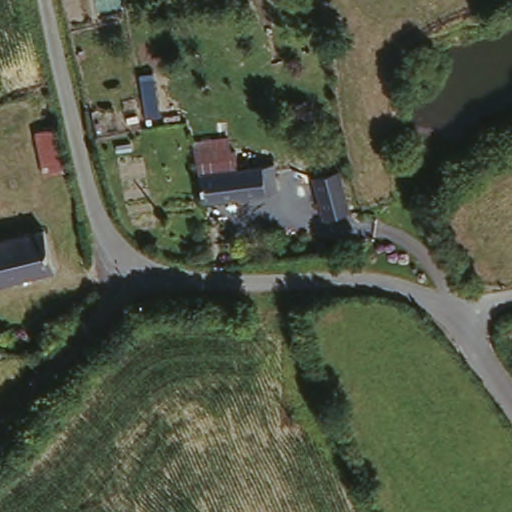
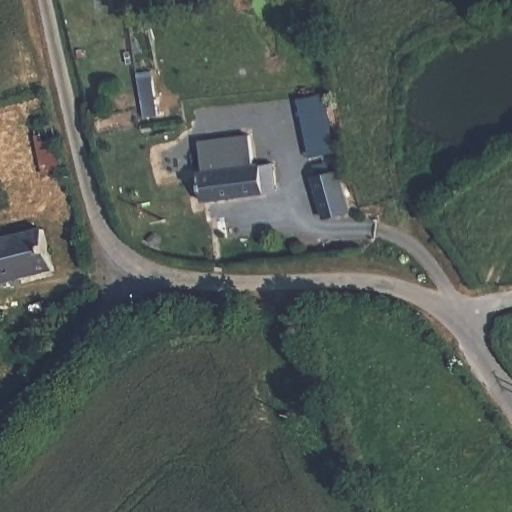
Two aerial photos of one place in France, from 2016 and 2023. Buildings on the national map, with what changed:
new [(299,100),(325,94),(337,153),(311,159),(299,100)]
unchanged [(203,196),(198,144),(251,137),(254,162),(271,159),(275,184),(214,194),(203,196)]
unchanged [(45,171),(41,141),(55,139),(60,168),(45,171)]
unchanged [(346,210),(323,219),(306,175),(329,166),(346,210)]
unchanged [(51,265),(0,282),(0,237),(38,225),(51,265)]

